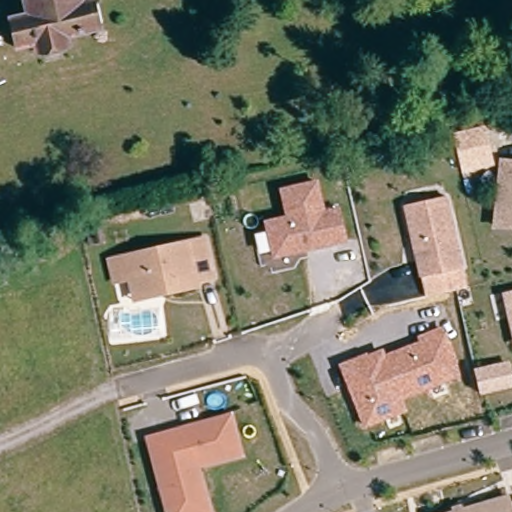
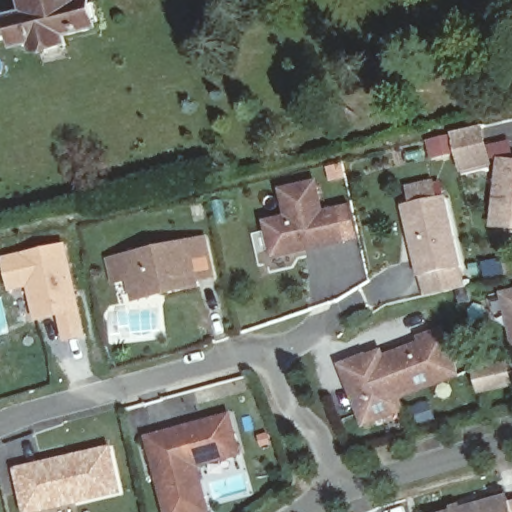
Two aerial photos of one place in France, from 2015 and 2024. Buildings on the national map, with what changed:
unchanged [(82,1),(89,30),(56,36),(59,45),(27,51),(25,43),(9,46),(4,17),(21,14),(18,0),(73,0),(74,3),(82,1)]
unchanged [(445,156),(426,161),(422,144),(441,139),(445,156)]
new [(474,150),(478,169),(449,176),(444,156),(474,150)]
unchanged [(503,161),(512,162),(512,227),(497,226),(503,161)]
unchanged [(277,255),(269,220),(291,215),(285,188),(319,180),(326,211),(341,208),(348,239),(332,243),(310,248),(277,255)]
unchanged [(458,291),(427,299),(422,279),(414,247),(411,235),(405,208),(446,198),(463,269),(468,289),(458,291)]
unchanged [(132,278),(117,281),(112,259),(126,256),(206,237),(216,275),(217,280),(201,284),(168,292),(137,299),(135,294),(132,278)]
new [(68,245),(88,338),(65,343),(59,318),(37,323),(29,288),(11,292),(4,256),(68,245)]
unchanged [(512,296),(512,318),(507,298),(512,296)]
unchanged [(407,412),(364,429),(339,365),(383,348),(385,354),(419,342),(417,337),(443,327),(461,377),(403,401),(407,412)]
unchanged [(482,395),(477,372),(509,364),(512,377),(512,388),(492,393),(482,395)]
unchanged [(170,509),(150,437),(182,428),(190,426),(232,414),(243,454),(199,466),(208,499),(212,512),(170,512),(170,509)]
new [(123,496),(44,512),(24,512),(15,469),(113,447),(123,496)]
unchanged [(508,501),(510,509),(512,508),(512,512),(470,512),(508,501)]

